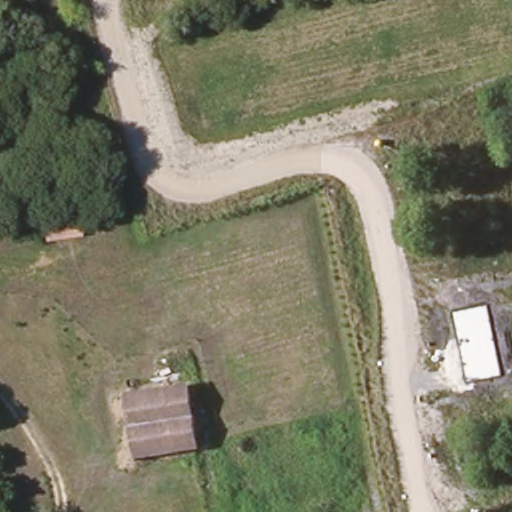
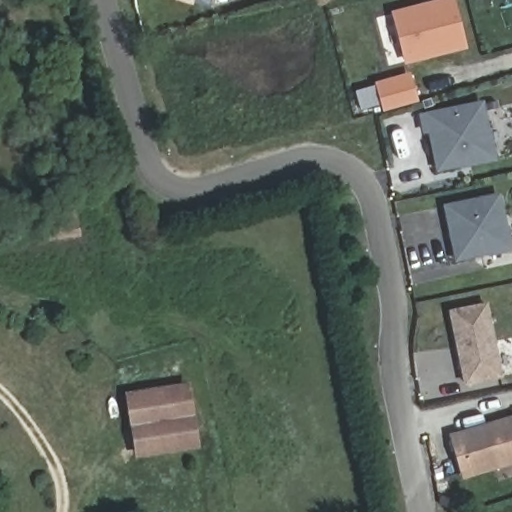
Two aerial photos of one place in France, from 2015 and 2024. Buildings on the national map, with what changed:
new [(193,5),(175,0),(194,0),(193,5)]
new [(454,0),(466,48),(409,63),(397,15),(454,0)]
new [(411,78),(417,99),(386,108),(380,86),(411,78)]
new [(435,171),(429,133),(422,134),(418,113),(485,99),(497,160),(435,171)]
new [(444,204),(500,192),(512,246),(512,251),(455,261),(444,204)]
unchanged [(42,241),(38,221),(77,214),(80,236),(42,241)]
unchanged [(464,382),(449,311),(486,305),(501,375),(464,382)]
unchanged [(196,444),(137,454),(128,394),(187,385),(196,444)]
new [(449,435),(512,415),(512,465),(462,480),(449,435)]

